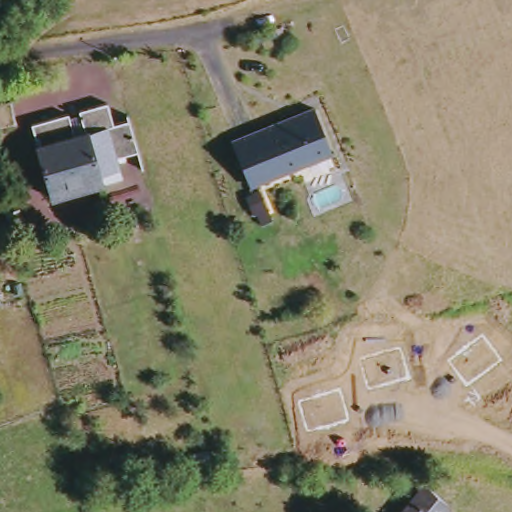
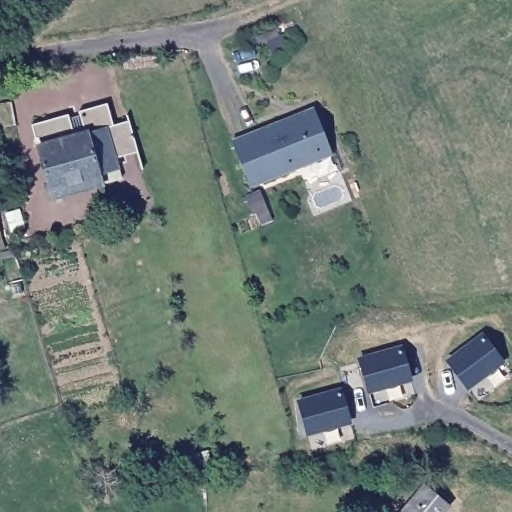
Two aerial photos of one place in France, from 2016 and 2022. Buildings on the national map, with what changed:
unchanged [(108,182),(109,184),(58,197),(43,147),(45,146),(43,140),(40,140),(38,126),(75,116),(76,119),(86,116),(86,113),(113,106),(119,126),(138,121),(146,150),(124,156),(126,169),(128,177),(108,182)]
unchanged [(332,150),(301,164),(253,187),(233,143),(286,119),(287,122),(294,119),(293,116),(313,106),(333,149),(332,150)]
new [(448,361),(482,335),(502,361),(467,387),(448,361)]
new [(359,361),(402,349),(411,379),(369,391),(359,361)]
new [(299,403),(341,391),(349,422),(308,433),(299,403)]
unchanged [(444,512),(402,512),(424,486),(449,507),(444,512)]

